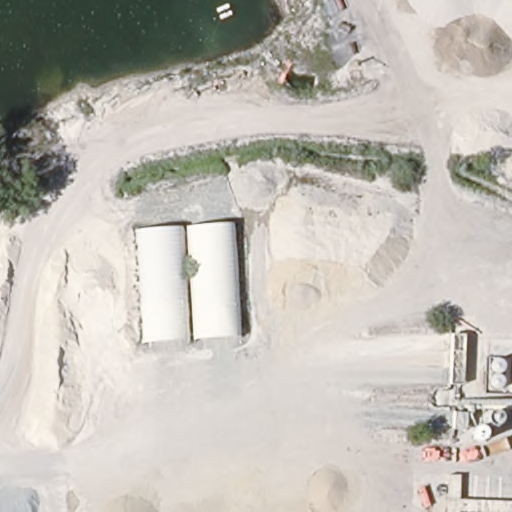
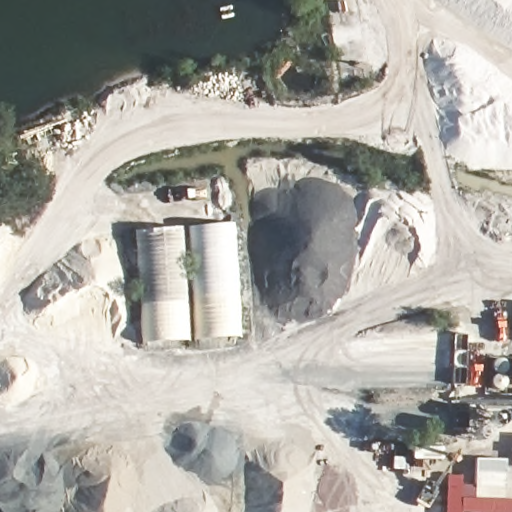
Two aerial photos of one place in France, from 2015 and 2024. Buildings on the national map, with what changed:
unchanged [(235,337),(141,344),(134,228),(227,222),(235,337)]
new [(474,459),(506,461),(504,499),(512,501),(512,512),(446,512),(445,477),(461,476),(461,484),(472,484),(474,459)]

